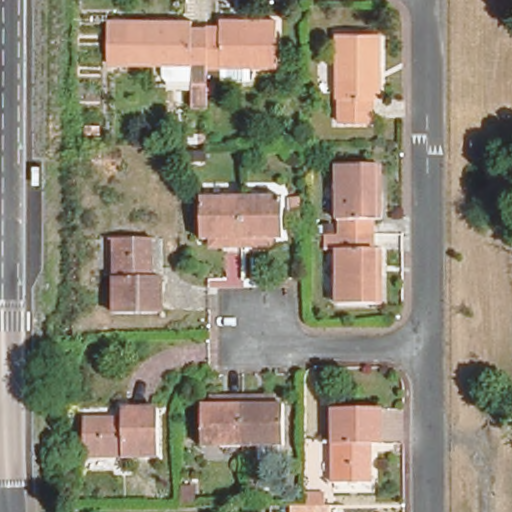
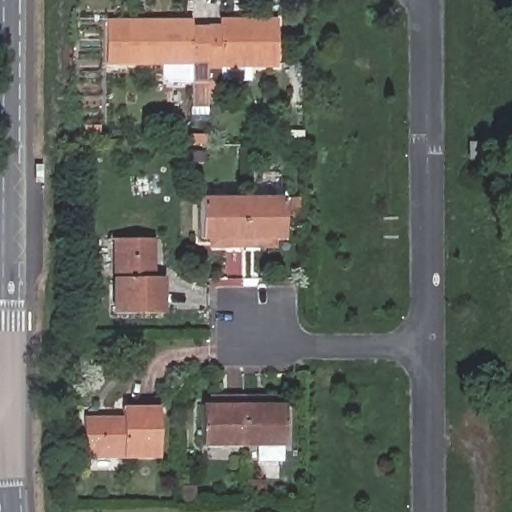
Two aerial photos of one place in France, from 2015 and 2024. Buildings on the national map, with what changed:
unchanged [(225,84),(225,79),(218,79),(218,84),(208,84),(207,32),(219,31),(219,25),(276,25),(276,70),(248,69),(248,84),(225,84)]
unchanged [(162,80),(162,67),(107,67),(106,26),(190,26),(190,32),(207,32),(208,84),(208,109),(191,109),(191,84),(167,84),(162,80)]
demolished [(377,32),(378,95),(372,95),(372,120),(339,120),(340,96),(336,96),(336,32),(377,32)]
unchanged [(489,141),(488,157),(472,157),(472,140),(489,141)]
demolished [(338,237),(326,237),(323,237),(323,227),(338,227),(338,223),(335,223),(335,172),(380,171),(380,223),(373,222),(373,237),(338,237)]
unchanged [(302,217),(290,218),(289,195),(302,195),(302,217)]
unchanged [(208,237),(201,237),(201,199),(242,198),(242,246),(224,246),(207,246),(208,237)]
unchanged [(258,246),(242,246),(242,198),(282,198),(282,237),(274,237),(273,247),(258,246)]
demolished [(373,254),(380,254),(379,307),(335,307),(336,254),(326,254),(326,237),(338,237),(373,237),(373,254)]
unchanged [(152,240),(152,277),(163,277),(162,312),(113,312),(113,240),(152,240)]
unchanged [(243,443),(202,443),(202,405),(243,405),(243,443)]
unchanged [(282,405),(283,443),(243,443),(243,405),(282,405)]
unchanged [(157,456),(84,456),(84,417),(121,418),(121,407),(157,407),(157,456)]
demolished [(381,408),(381,442),(371,442),(371,481),(333,481),(333,408),(381,408)]
unchanged [(263,478),(263,497),(245,497),(245,477),(263,478)]

